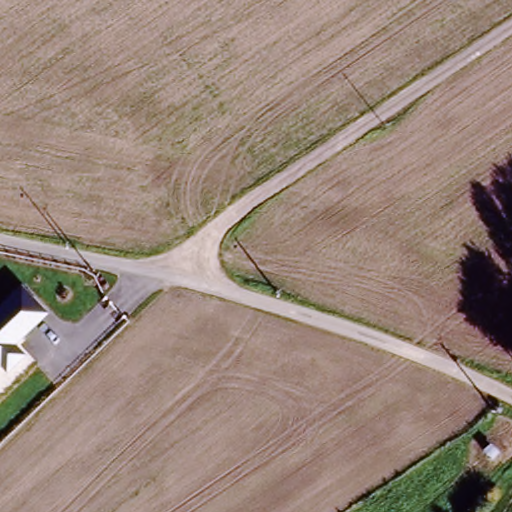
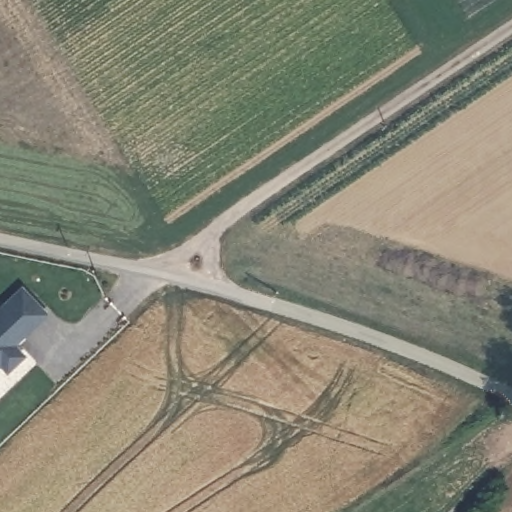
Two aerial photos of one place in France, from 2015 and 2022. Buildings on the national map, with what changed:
unchanged [(50,314),(17,347),(25,356),(6,377),(0,371),(0,304),(20,285),(50,314)]

